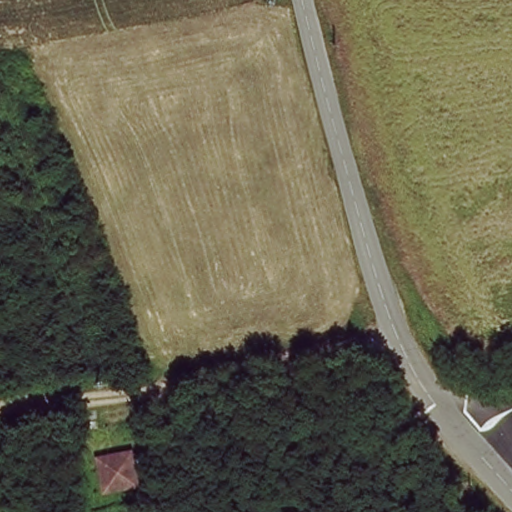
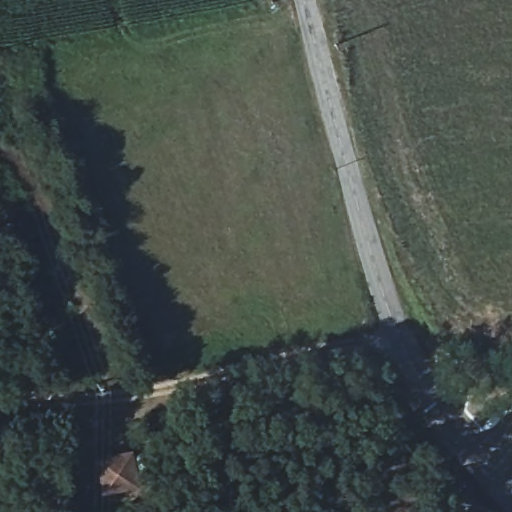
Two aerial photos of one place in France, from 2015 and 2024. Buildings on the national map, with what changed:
unchanged [(140,457),(143,487),(111,491),(107,459),(140,457)]

